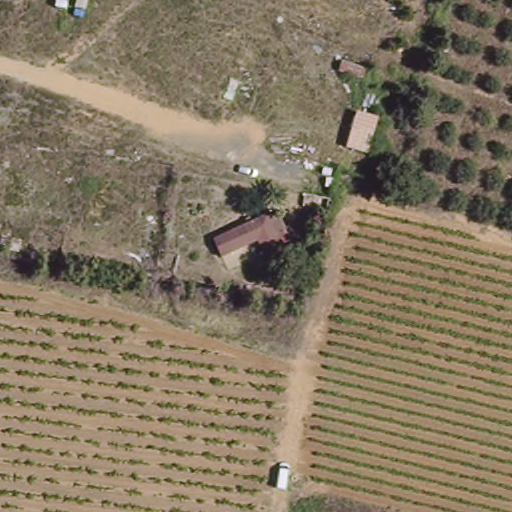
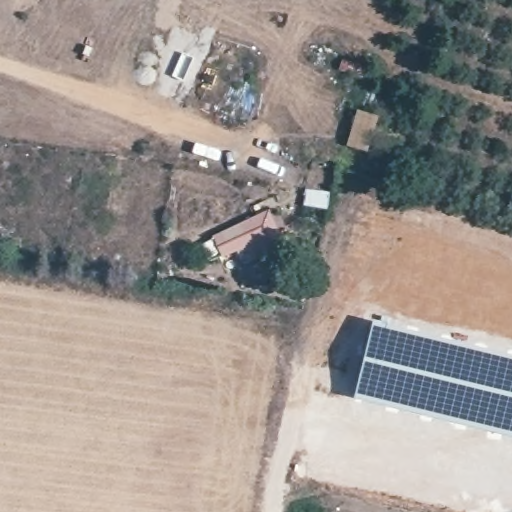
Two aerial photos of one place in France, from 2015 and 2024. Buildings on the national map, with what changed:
unchanged [(374,119),(365,153),(350,149),(358,114),(374,119)]
unchanged [(266,258),(258,242),(221,258),(212,237),(274,210),(283,230),(276,234),(283,249),(266,258)]
new [(371,319),(512,356),(512,435),(509,434),(352,397),(371,319)]

